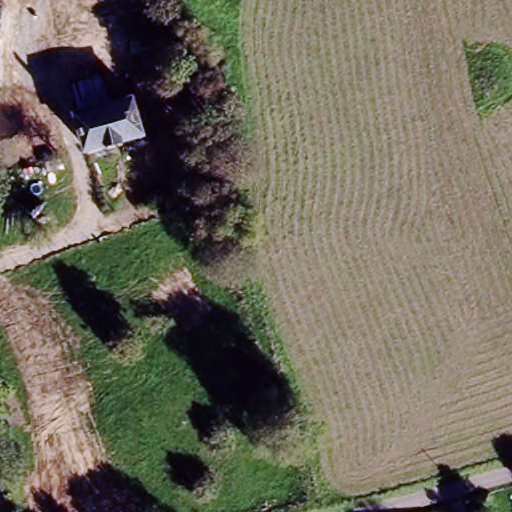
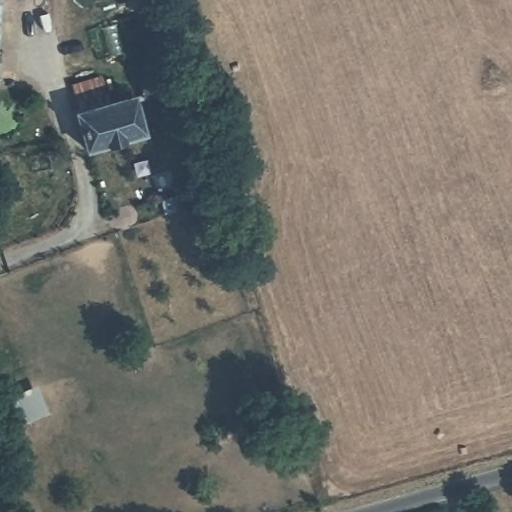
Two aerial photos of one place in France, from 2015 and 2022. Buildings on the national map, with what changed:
unchanged [(177,69),(182,85),(159,92),(154,77),(177,69)]
unchanged [(146,127),(87,144),(79,117),(84,116),(76,90),(105,81),(112,107),(137,99),(146,127)]
unchanged [(26,420),(16,390),(35,384),(45,413),(26,420)]

